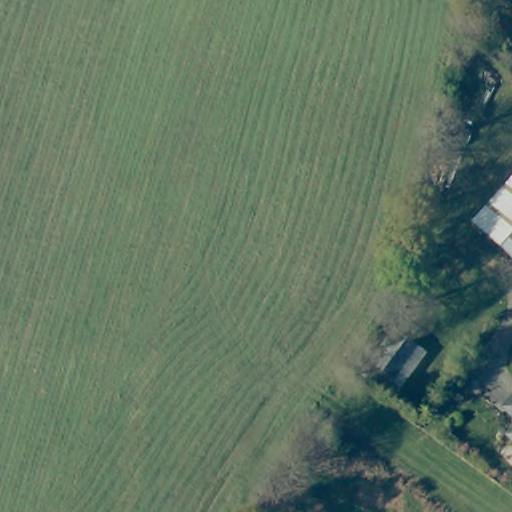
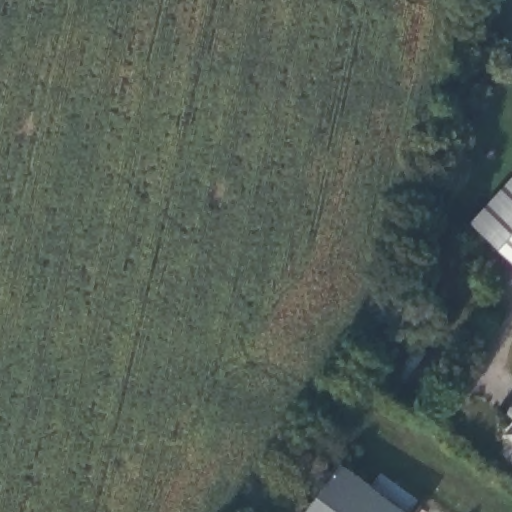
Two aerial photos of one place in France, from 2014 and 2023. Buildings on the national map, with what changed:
unchanged [(472,223),(512,180),(512,261),(472,223)]
unchanged [(512,420),(512,441),(501,431),(512,420)]
new [(341,466),(404,512),(305,512),(341,466)]

